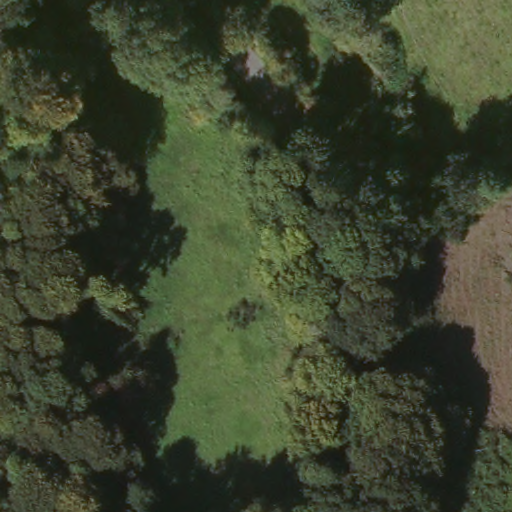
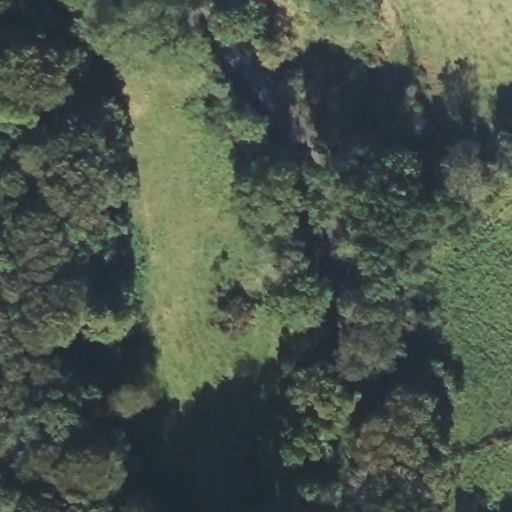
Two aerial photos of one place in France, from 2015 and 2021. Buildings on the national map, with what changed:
[]

